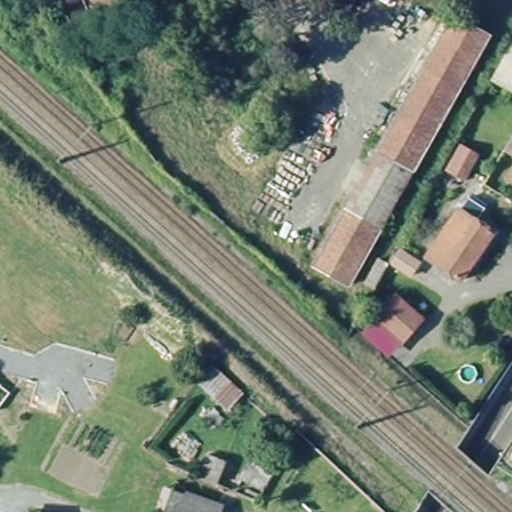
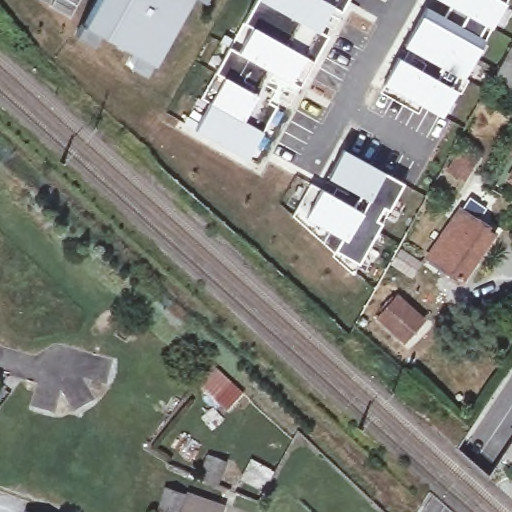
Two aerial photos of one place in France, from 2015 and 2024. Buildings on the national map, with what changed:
new [(135,52),(100,32),(93,44),(75,35),(82,23),(96,0),(189,0),(152,62),(146,74),(128,64),(135,52)]
new [(211,102),(202,97),(230,47),(221,42),(225,36),(235,40),(257,0),(347,0),(342,10),(338,17),(330,12),(320,30),(328,34),(300,85),(296,92),(287,87),(277,105),(248,158),(196,129),(185,123),(189,117),(200,123),(211,102)]
new [(205,1),(204,0),(205,0),(205,1)]
new [(405,45),(427,7),(445,17),(451,4),(444,0),(507,0),(443,116),(385,83),(399,57),(436,78),(420,68),(426,57),(405,45)]
demolished [(380,148),(452,17),(488,37),(415,169),(380,148)]
unchanged [(493,82),(512,48),(512,92),(493,82)]
unchanged [(507,149),(512,141),(512,151),(507,149)]
unchanged [(462,145),(480,156),(466,180),(450,170),(462,145)]
new [(321,189),(354,207),(361,194),(329,175),(344,150),(384,173),(403,184),(390,211),(384,207),(376,221),(381,224),(360,264),(354,275),(331,255),(335,250),(293,215),(311,183),(321,189)]
demolished [(350,284),(315,263),(345,210),(380,231),(350,284)]
unchanged [(472,210),(505,232),(471,282),(439,258),(472,210)]
unchanged [(410,248),(432,264),(419,280),(400,265),(410,248)]
demolished [(387,288),(377,282),(388,260),(400,266),(387,288)]
unchanged [(425,321),(402,346),(378,324),(400,299),(425,321)]
unchanged [(248,389),(230,410),(198,382),(215,362),(248,389)]
unchanged [(230,466),(220,488),(215,486),(200,480),(210,457),(230,466)]
unchanged [(229,508),(227,512),(176,512),(183,493),(229,508)]

